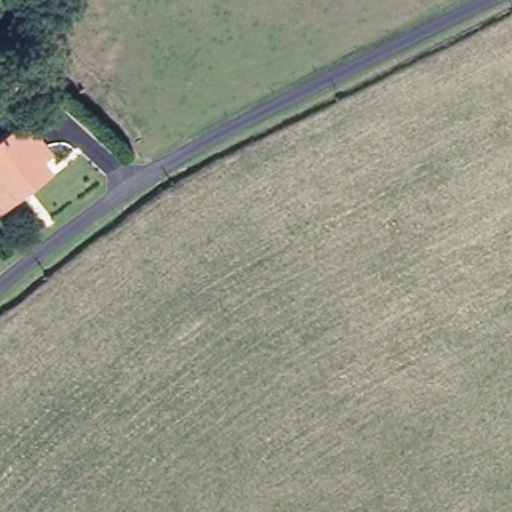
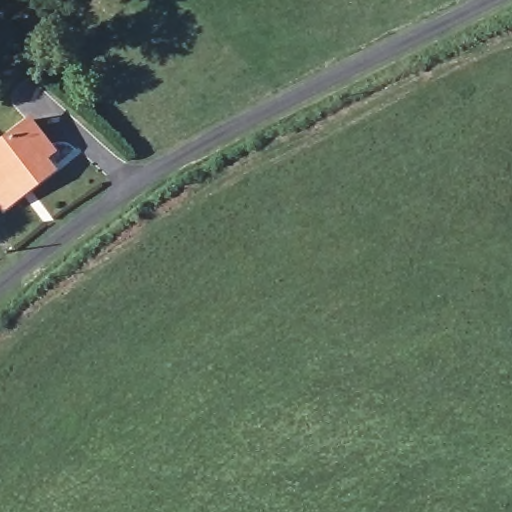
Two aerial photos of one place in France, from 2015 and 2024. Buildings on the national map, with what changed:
unchanged [(0,193),(0,138),(9,129),(22,116),(51,150),(42,159),(48,166),(10,203),(0,193)]

